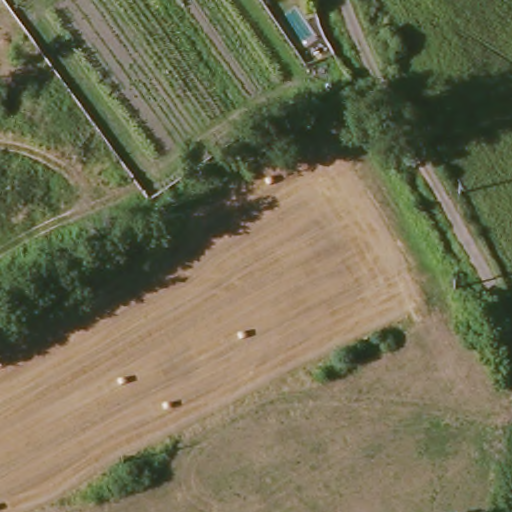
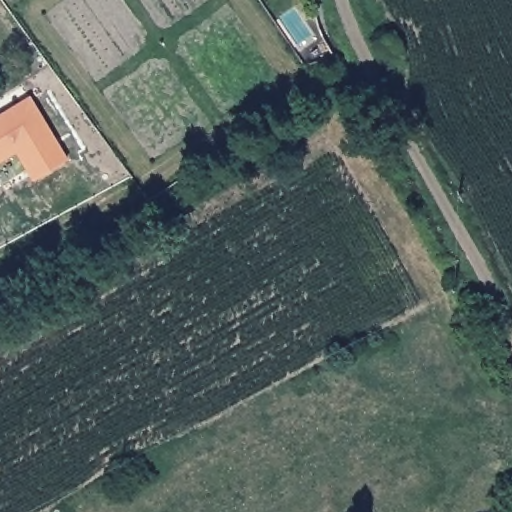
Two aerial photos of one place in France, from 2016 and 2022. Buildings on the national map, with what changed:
new [(15,154),(0,163),(0,115),(32,96),(70,159),(35,181),(15,154)]

